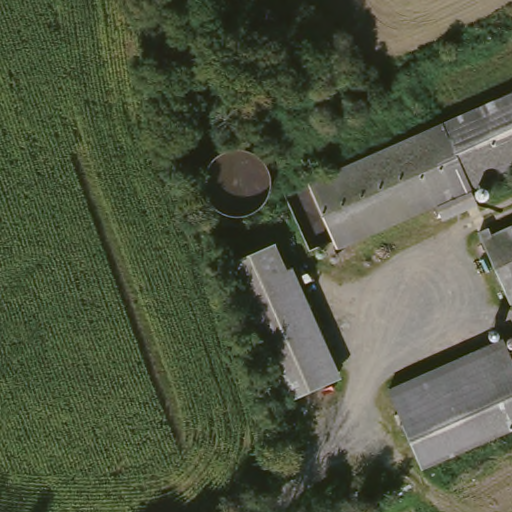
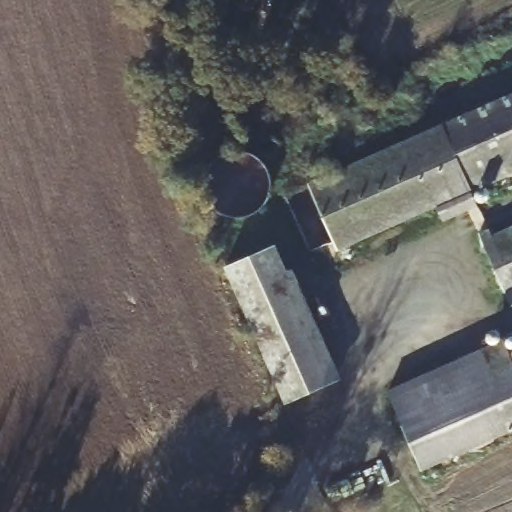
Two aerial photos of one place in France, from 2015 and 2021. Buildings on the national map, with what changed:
unchanged [(478,206),(478,208),(469,212),(443,223),(437,208),(337,252),(306,180),(512,90),(512,176),(472,193),(478,206)]
unchanged [(495,230),(499,239),(512,233),(512,291),(486,234),(495,230)]
unchanged [(342,381),(280,411),(222,272),(275,245),(342,381)]
unchanged [(382,395),(495,343),(506,365),(512,363),(512,431),(418,473),(382,395)]

